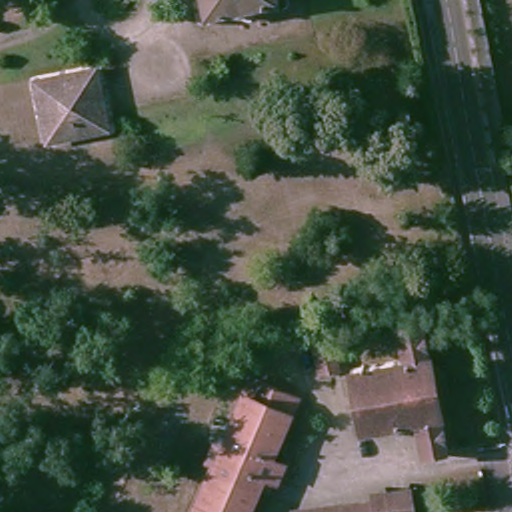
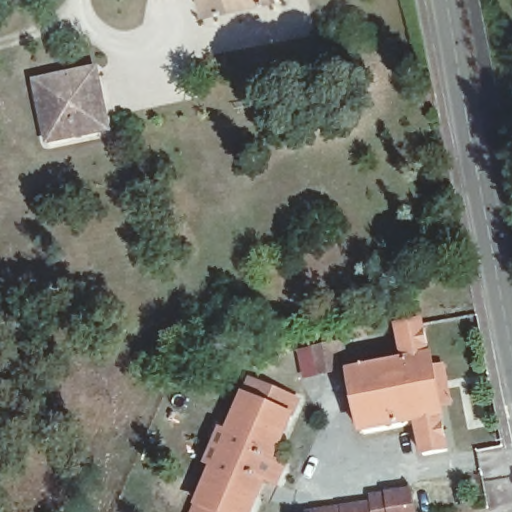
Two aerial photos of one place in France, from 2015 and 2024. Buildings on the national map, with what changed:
unchanged [(206,15),(203,0),(277,0),(206,15)]
unchanged [(94,70),(108,128),(56,139),(51,140),(39,82),(48,80),(94,70)]
unchanged [(422,455),(416,423),(364,433),(350,372),(403,360),(397,329),(423,323),(431,368),(442,366),(449,403),(438,405),(447,451),(422,455)]
unchanged [(311,351),(340,345),(342,355),(334,356),(337,371),(316,376),(311,351)]
unchanged [(273,460),(287,465),(280,483),(267,477),(252,512),(200,512),(219,467),(212,464),(225,432),(233,435),(255,382),(298,400),(273,460)]
unchanged [(368,493),(389,490),(389,495),(414,492),(417,512),(298,512),(370,501),(368,493)]

